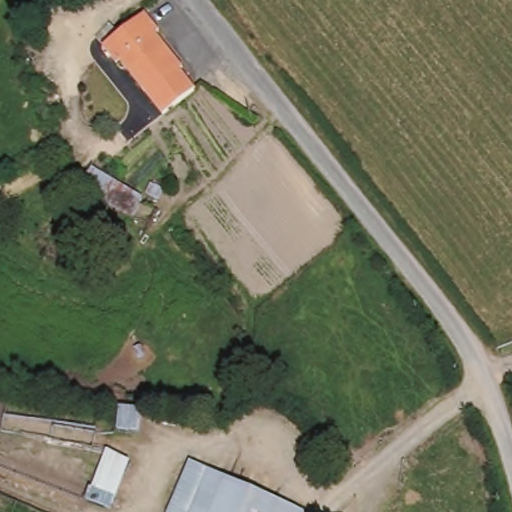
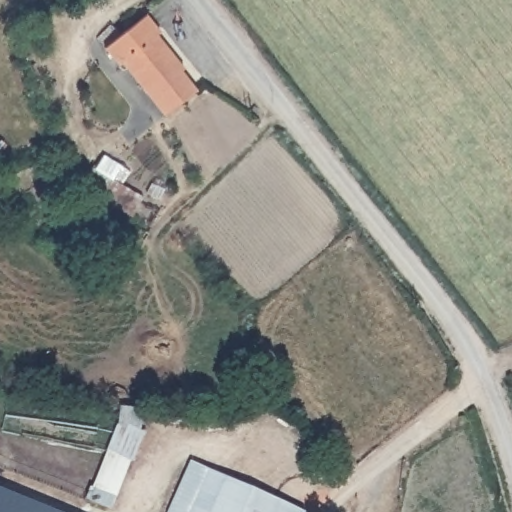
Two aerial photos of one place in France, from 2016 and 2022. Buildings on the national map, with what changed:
unchanged [(187,68),(185,72),(198,88),(166,113),(128,66),(123,68),(111,50),(154,16),(168,33),(163,37),(187,68)]
unchanged [(121,409),(143,411),(141,434),(118,432),(121,409)]
unchanged [(86,499),(90,487),(93,488),(107,452),(131,462),(112,510),(86,499)]
unchanged [(188,460),(302,512),(162,512),(188,460)]
new [(53,512),(0,512),(0,490),(53,512)]

